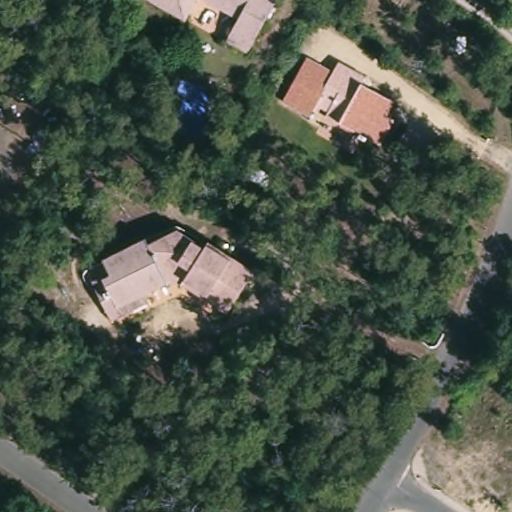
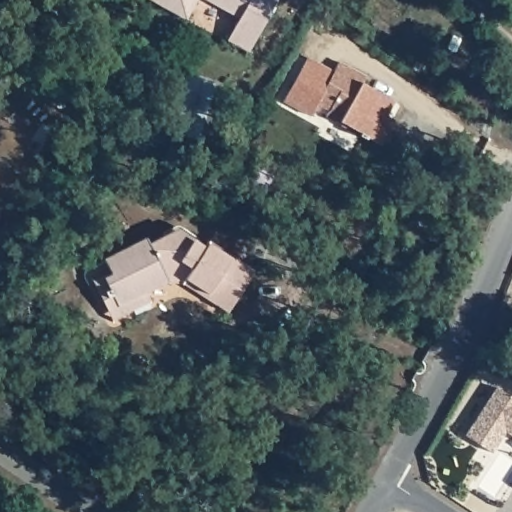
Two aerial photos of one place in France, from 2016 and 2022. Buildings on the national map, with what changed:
unchanged [(220,44),(228,32),(233,23),(192,2),(190,4),(180,23),(172,18),(140,0),(272,0),(263,15),(247,43),(240,56),(220,44)]
unchanged [(320,111),(318,117),(313,114),(310,120),(283,105),(307,62),(333,77),(338,68),(365,82),(361,87),(392,105),(385,118),(392,124),(380,150),(325,120),(328,115),(320,111)]
unchanged [(40,121),(51,130),(35,154),(24,146),(40,121)]
unchanged [(112,325),(90,286),(109,277),(104,265),(146,244),(149,250),(179,236),(203,253),(207,247),(250,277),(225,314),(182,286),(166,284),(145,296),(150,306),(112,325)]
new [(503,433),(490,454),(463,436),(495,389),(512,401),(512,439),(503,433)]

